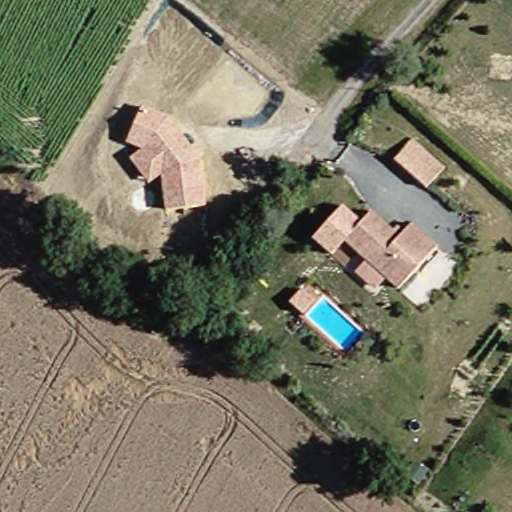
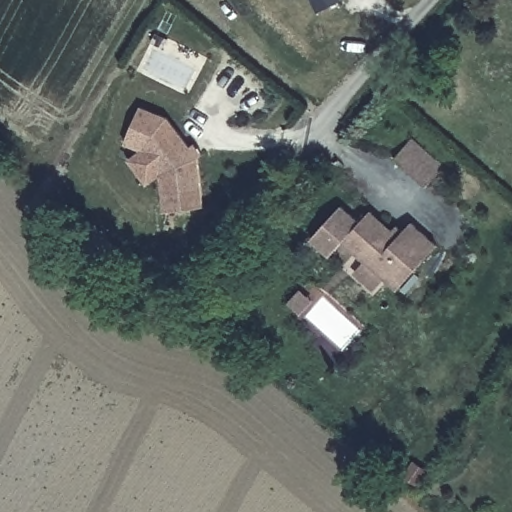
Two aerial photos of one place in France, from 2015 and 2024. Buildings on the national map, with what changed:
new [(318,11),(313,0),(342,0),(342,1),(318,11)]
unchanged [(146,156),(160,146),(142,139),(156,105),(182,115),(213,155),(219,202),(181,207),(176,169),(164,179),(146,156)]
unchanged [(408,141),(437,168),(420,186),(391,160),(408,141)]
unchanged [(395,241),(406,228),(432,250),(395,291),(341,244),(331,254),(313,238),(342,206),(360,223),(366,216),(395,241)]

